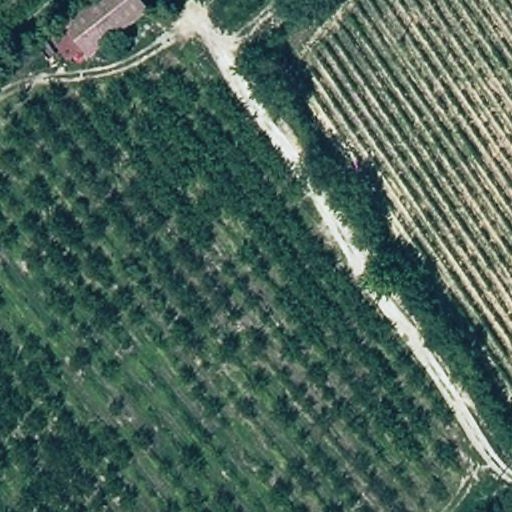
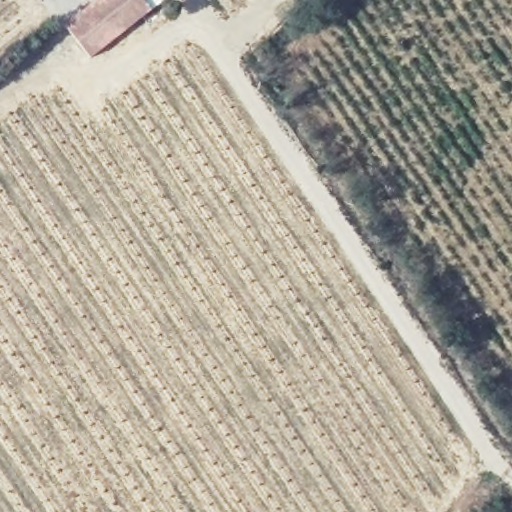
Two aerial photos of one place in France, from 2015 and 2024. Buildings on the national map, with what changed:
unchanged [(143,0),(152,11),(90,59),(64,26),(97,0),(143,0)]

